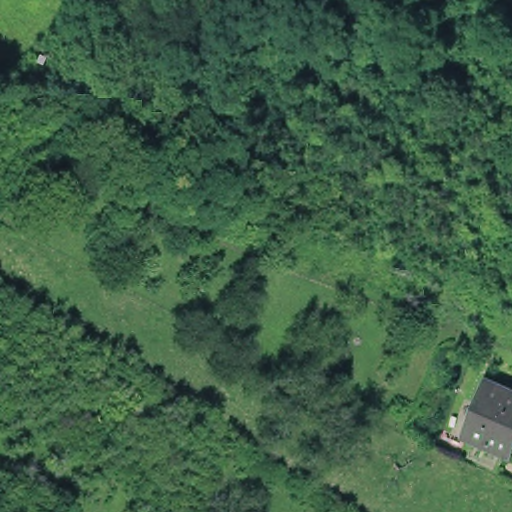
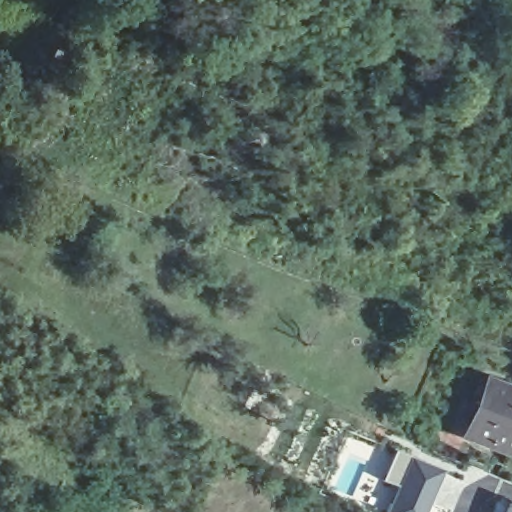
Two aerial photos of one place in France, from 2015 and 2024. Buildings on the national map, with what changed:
unchanged [(512,393),(512,438),(505,453),(464,435),(487,381),(512,393)]
new [(440,470),(422,512),(383,512),(394,487),(380,481),(394,450),(440,470)]
new [(512,503),(512,512),(503,512),(508,501),(512,503)]

